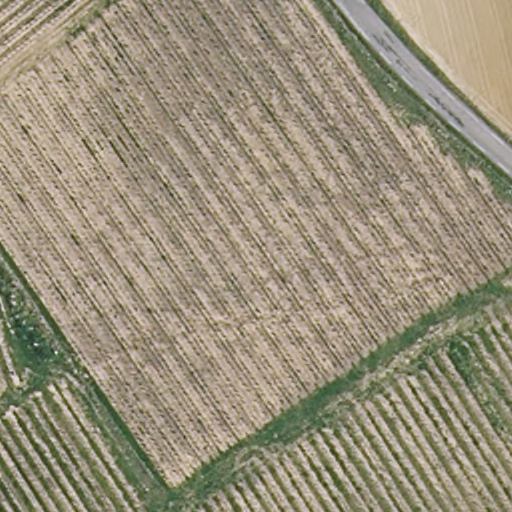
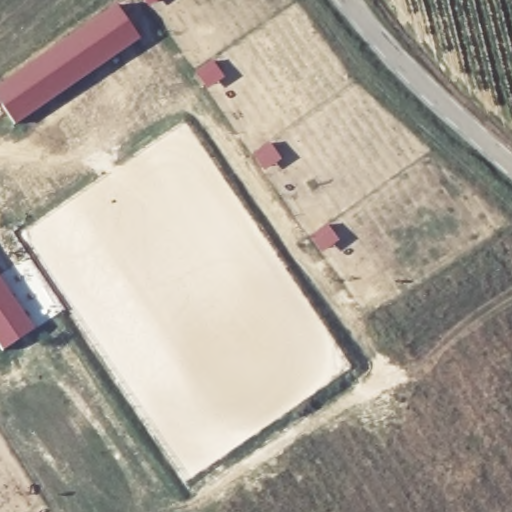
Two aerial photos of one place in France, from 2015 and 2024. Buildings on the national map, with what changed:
new [(139,39),(15,124),(0,102),(0,85),(117,3),(139,39)]

